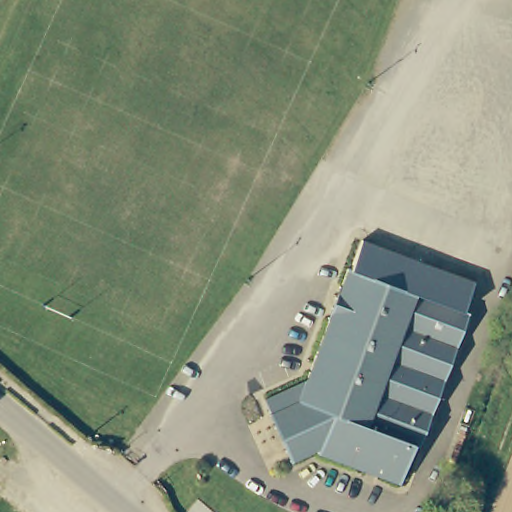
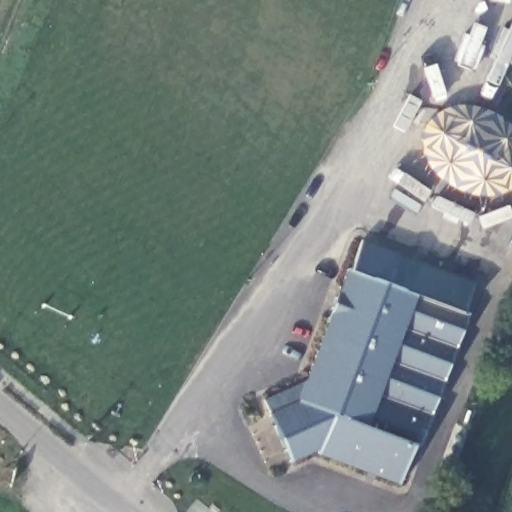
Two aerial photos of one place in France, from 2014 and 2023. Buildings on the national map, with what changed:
unchanged [(479,284),(470,312),(477,316),(427,447),(421,444),(404,486),(326,455),(328,444),(299,462),(269,404),(309,383),(342,287),(344,287),(352,266),(357,268),(367,242),(479,284)]

